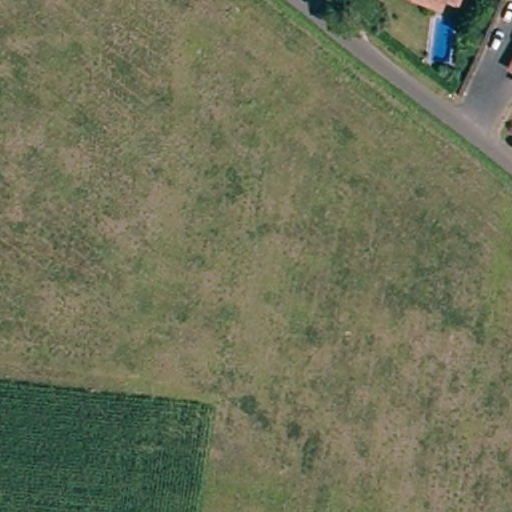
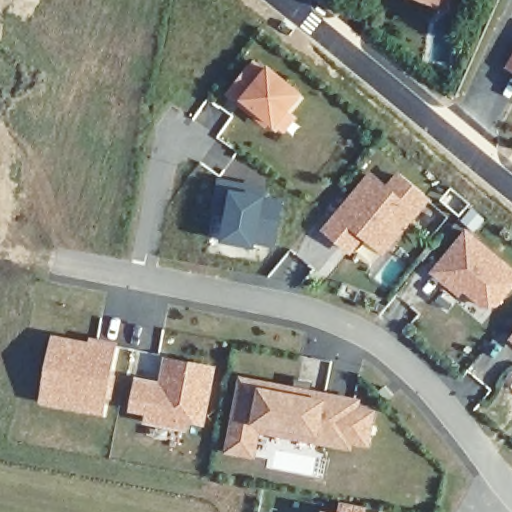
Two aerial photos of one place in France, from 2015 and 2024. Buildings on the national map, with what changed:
unchanged [(512,59),(512,61),(511,60),(512,59)]
new [(280,135),(273,129),(242,104),(230,94),(245,75),(252,67),(264,77),(267,73),(298,99),(284,115),(292,122),(280,135)]
new [(374,180),(390,193),(402,179),(429,202),(386,254),(367,238),(353,254),(330,234),(374,180)]
new [(247,185),(246,194),(253,195),(284,201),(276,244),(257,242),(256,246),(226,240),(231,214),(216,211),(222,180),(247,185)]
new [(465,294),(461,299),(430,274),(468,228),(512,266),(512,293),(500,308),(483,309),(465,294)]
new [(512,340),(511,339),(512,338),(512,340)]
new [(55,342),(92,349),(93,344),(115,349),(102,414),(80,410),(43,403),(46,389),(55,342)]
new [(137,388),(164,392),(168,366),(212,374),(202,428),(187,424),(185,432),(148,425),(149,418),(133,415),(137,388)]
new [(264,388),(262,396),(288,401),(290,393),(296,394),(298,384),(311,387),(309,397),(324,399),(320,425),(345,430),(343,444),(233,424),(241,384),(264,388)]
new [(367,449),(350,446),(348,452),(257,434),(252,460),(227,456),(233,424),(343,444),(345,430),(320,425),(324,399),(357,406),(356,414),(373,417),(367,449)]
new [(345,508),(368,512),(344,512),(345,508)]

